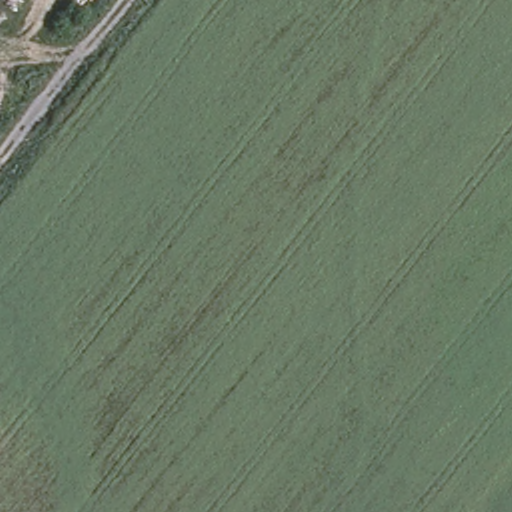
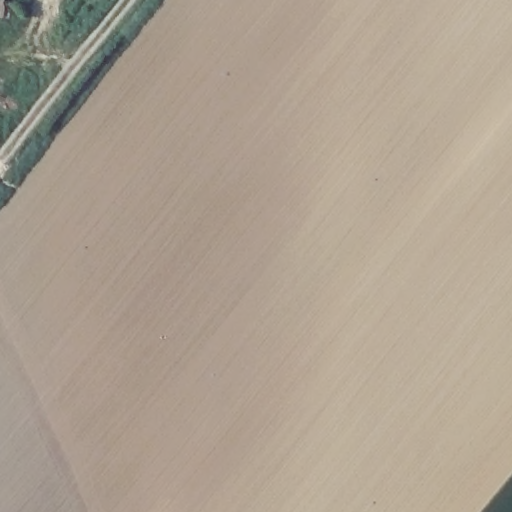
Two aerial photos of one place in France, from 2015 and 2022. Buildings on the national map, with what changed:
[]

